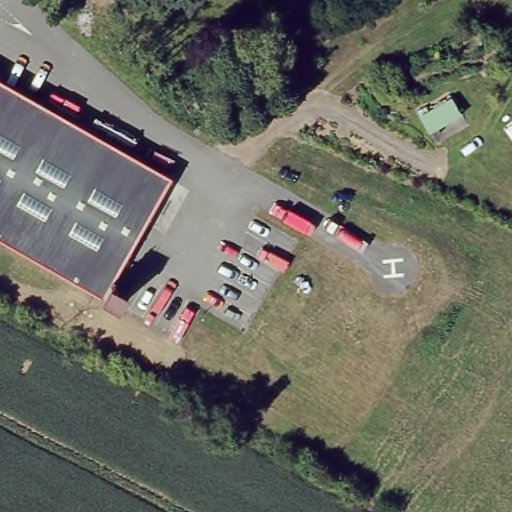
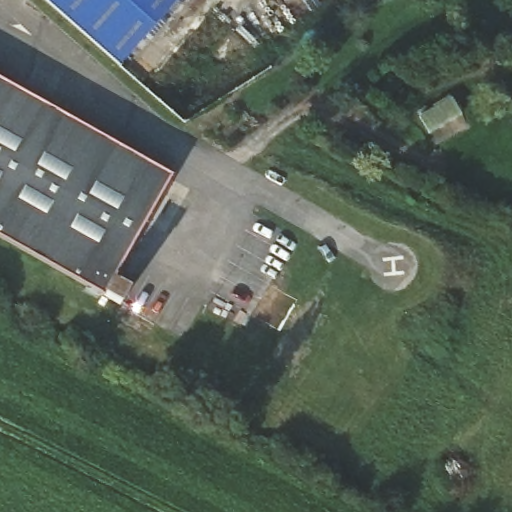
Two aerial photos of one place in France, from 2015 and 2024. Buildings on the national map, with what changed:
new [(42,0),(177,0),(119,67),(42,0)]
unchanged [(176,176),(115,282),(132,292),(125,305),(0,235),(0,77),(176,176)]

